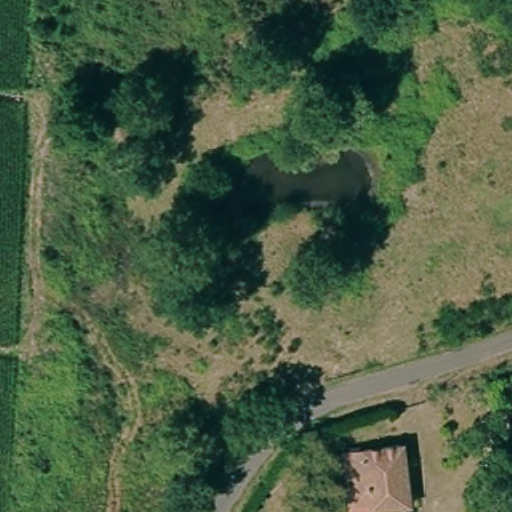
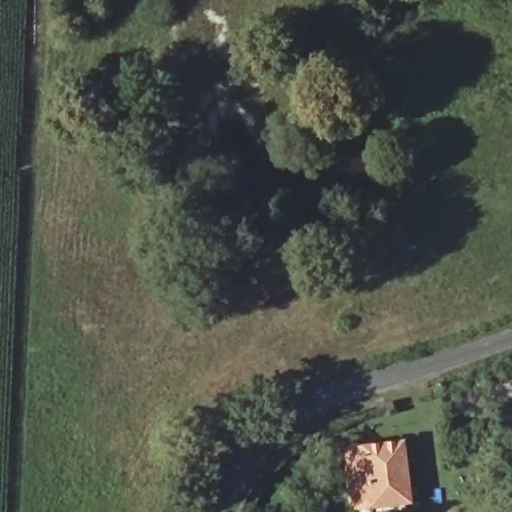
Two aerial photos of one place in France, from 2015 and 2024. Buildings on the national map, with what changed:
unchanged [(411,496),(360,509),(356,510),(344,456),(397,442),(411,496)]

